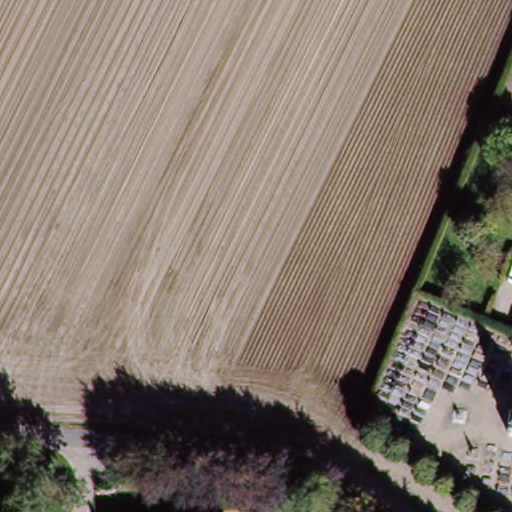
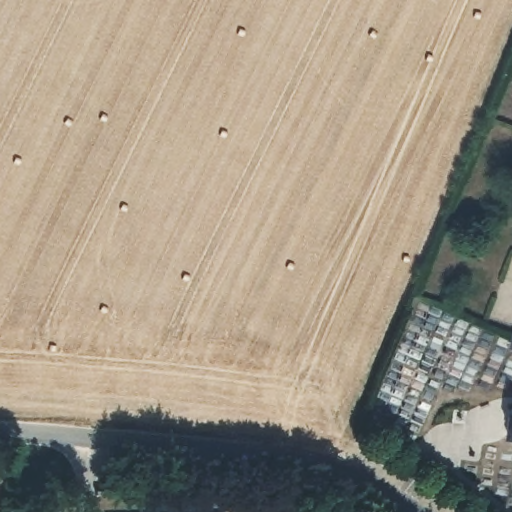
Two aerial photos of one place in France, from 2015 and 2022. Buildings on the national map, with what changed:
unchanged [(512,418),(511,416),(512,417),(512,418)]
unchanged [(512,432),(512,447),(510,447),(512,432)]

